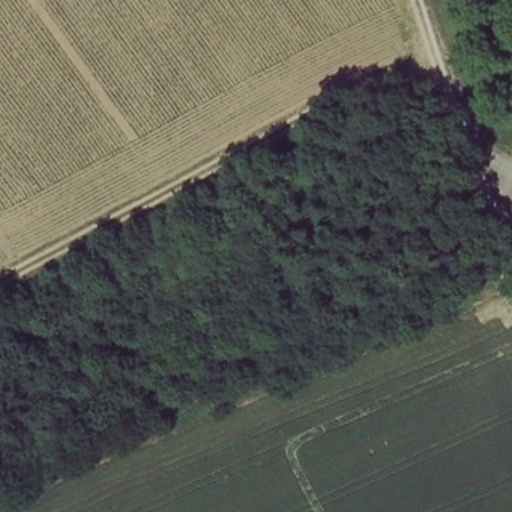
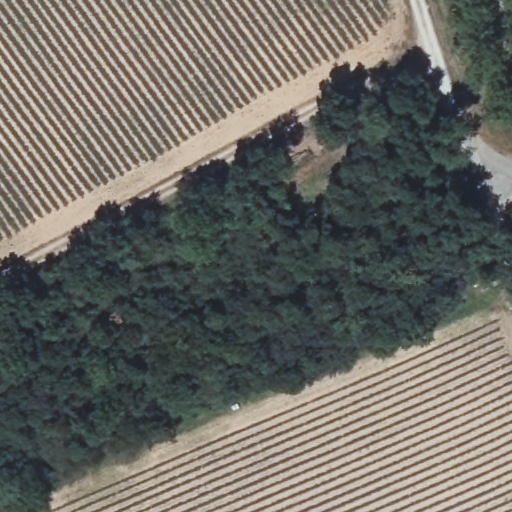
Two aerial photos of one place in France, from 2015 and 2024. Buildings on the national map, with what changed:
[]

